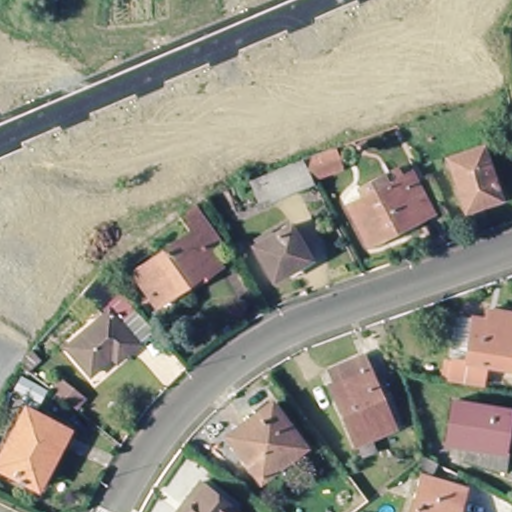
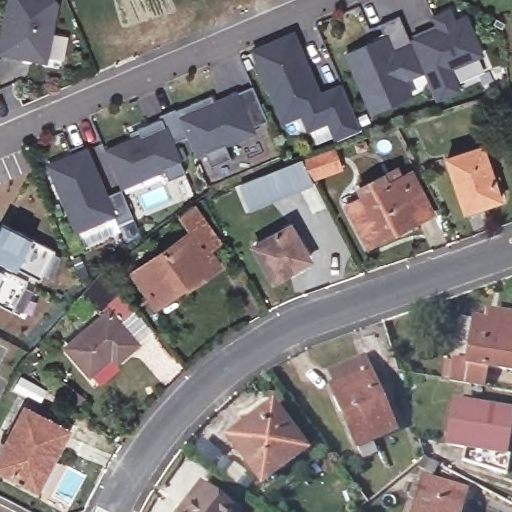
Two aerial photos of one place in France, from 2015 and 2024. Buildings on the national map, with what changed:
new [(2,0),(50,0),(52,4),(41,60),(0,52),(0,12),(2,0)]
new [(366,107),(342,51),(371,39),(378,35),(373,23),(392,15),(402,40),(417,33),(430,27),(426,16),(440,10),(445,21),(456,16),(471,52),(440,65),(449,86),(427,96),(415,69),(397,76),(403,91),(382,100),(366,107)]
new [(287,34),(313,95),(336,85),(354,126),(330,136),(322,120),(303,128),(296,112),(278,120),(248,51),(287,34)]
new [(195,100),(198,107),(247,86),(261,121),(246,127),(248,133),(219,145),(225,159),(205,167),(199,154),(190,158),(181,138),(170,111),(195,100)]
new [(135,136),(132,130),(155,120),(154,116),(169,110),(170,111),(181,138),(167,144),(181,175),(163,182),(159,171),(115,190),(99,152),(135,136)]
unchanged [(449,163),(484,149),(505,200),(471,215),(449,163)]
new [(115,190),(128,218),(112,225),(108,215),(71,231),(43,166),(81,150),(96,185),(101,196),(115,190)]
unchanged [(301,162),(329,151),(340,173),(314,187),(301,162)]
unchanged [(252,183),(295,165),(305,189),(260,207),(250,184),(252,183)]
unchanged [(364,205),(358,192),(381,180),(395,174),(401,185),(411,179),(431,217),(369,250),(349,212),(364,205)]
unchanged [(232,252),(221,261),(192,281),(188,276),(157,298),(135,266),(192,226),(180,211),(195,202),(220,236),(232,252)]
new [(14,308),(13,311),(0,304),(0,230),(3,223),(56,250),(54,254),(61,256),(54,280),(44,274),(41,280),(14,266),(11,272),(28,281),(25,287),(34,292),(23,312),(14,308)]
unchanged [(254,252),(289,230),(309,262),(273,285),(254,252)]
unchanged [(108,355),(88,373),(64,347),(101,315),(79,289),(95,269),(135,314),(150,331),(137,342),(124,354),(114,362),(108,355)]
unchanged [(454,323),(484,328),(486,317),(512,321),(512,377),(485,373),(481,394),(481,395),(443,388),(454,323)]
unchanged [(360,356),(392,427),(353,445),(326,386),(333,383),(327,371),(360,356)]
unchanged [(455,396),(510,405),(503,446),(510,447),(507,470),(459,462),(462,441),(448,438),(455,396)]
unchanged [(272,410),(302,451),(260,482),(230,440),(272,410)]
unchanged [(30,413),(72,435),(61,456),(54,453),(36,488),(1,470),(30,413)]
unchanged [(439,476),(437,485),(421,480),(423,472),(439,476)]
unchanged [(465,496),(461,512),(417,512),(424,485),(465,496)]
unchanged [(229,512),(192,512),(206,495),(229,512)]

